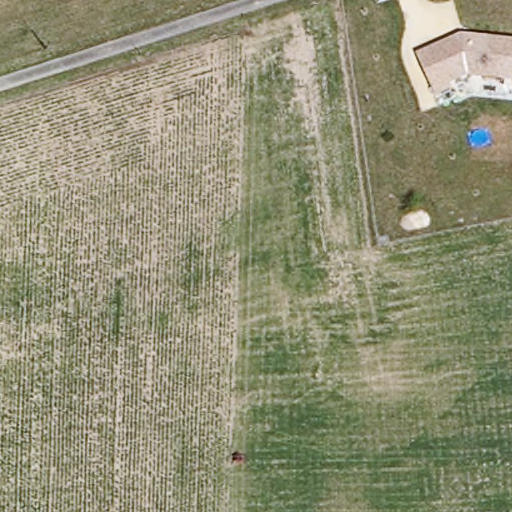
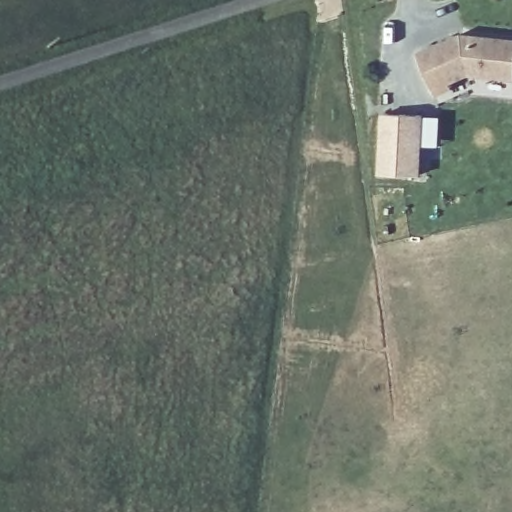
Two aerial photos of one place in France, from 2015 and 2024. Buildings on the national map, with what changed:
unchanged [(416,51),(461,31),(512,36),(512,80),(468,75),(451,81),(454,90),(435,97),(416,51)]
new [(421,178),(379,176),(382,112),(425,115),(421,178)]

